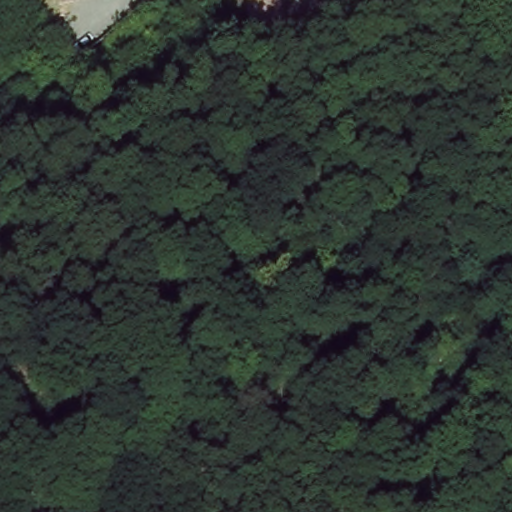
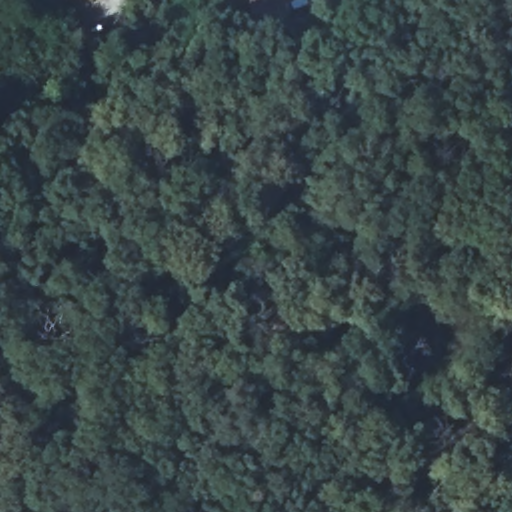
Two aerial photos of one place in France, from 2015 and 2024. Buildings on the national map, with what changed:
unchanged [(283,0),(288,17),(256,30),(249,0),(283,0)]

